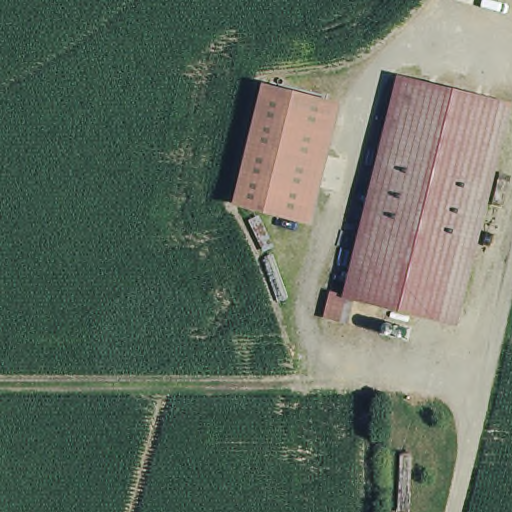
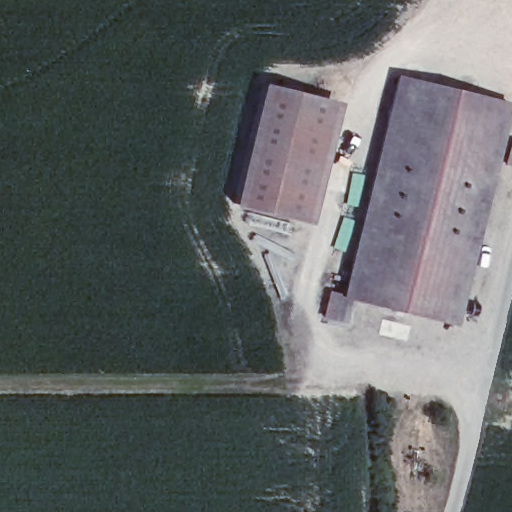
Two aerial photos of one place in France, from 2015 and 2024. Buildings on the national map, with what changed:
unchanged [(512,127),(465,314),(360,288),(355,312),(335,308),(341,282),(354,285),(408,66),(512,92),(512,127)]
unchanged [(235,203),(263,83),(339,102),(310,224),(235,203)]

